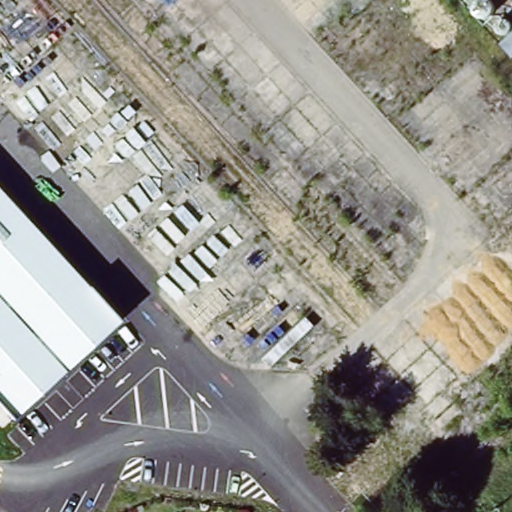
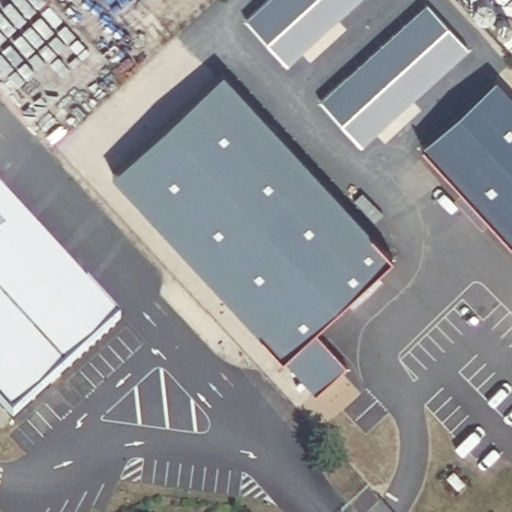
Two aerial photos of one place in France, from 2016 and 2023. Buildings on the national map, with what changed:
new [(245,19),(266,0),(356,0),(287,64),(245,19)]
new [(360,144),(319,99),(427,0),(469,46),(360,144)]
unchanged [(491,0),(512,20),(512,58),(461,0),(491,0)]
new [(316,324),(348,364),(317,390),(285,351),(282,354),(113,172),(224,69),(392,254),(316,324)]
unchanged [(120,319),(0,428),(0,188),(120,319)]
demolished [(406,407),(440,443),(369,512),(367,512),(347,493),(358,483),(342,466),(362,446),(406,407)]

